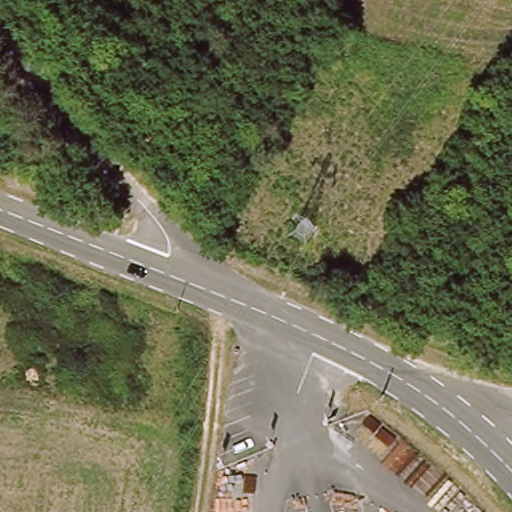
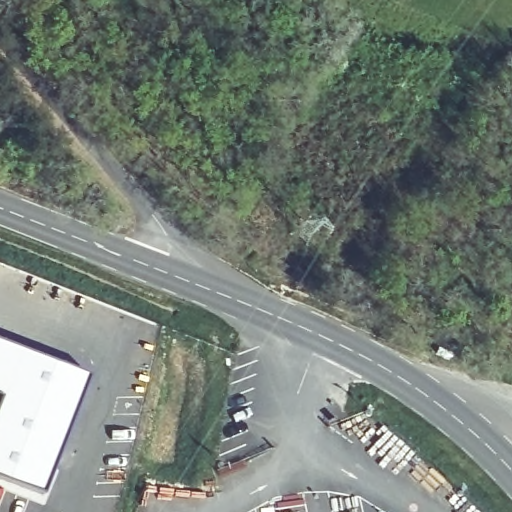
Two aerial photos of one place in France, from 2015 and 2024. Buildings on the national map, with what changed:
new [(0,396),(0,345),(88,375),(44,494),(0,477),(0,397),(0,396)]

